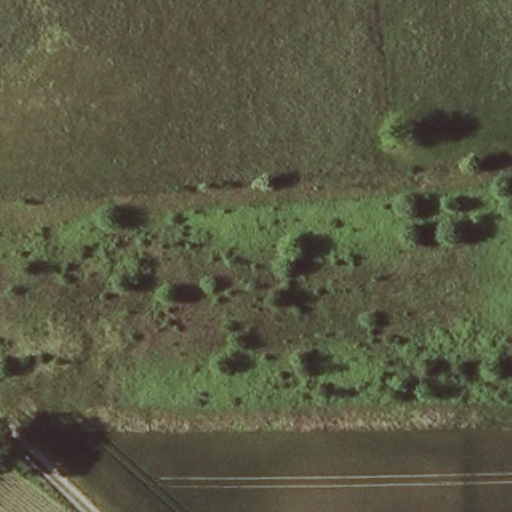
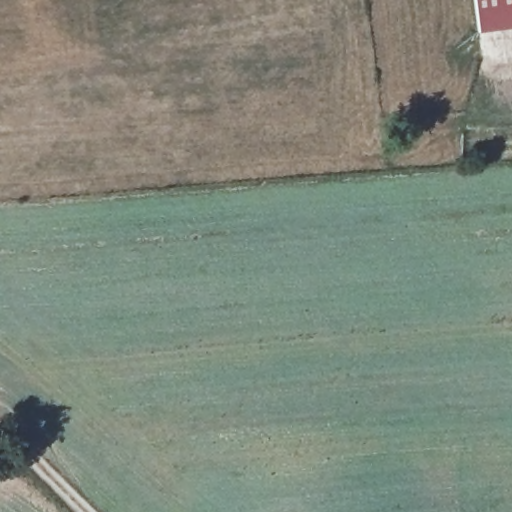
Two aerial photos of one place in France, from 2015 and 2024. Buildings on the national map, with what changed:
new [(480,32),(476,0),(512,0),(512,27),(480,32)]

